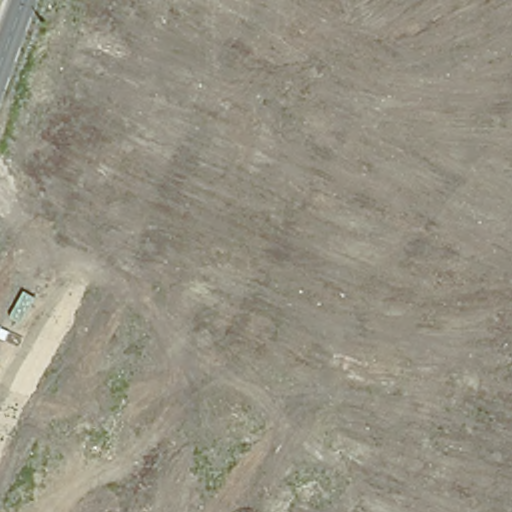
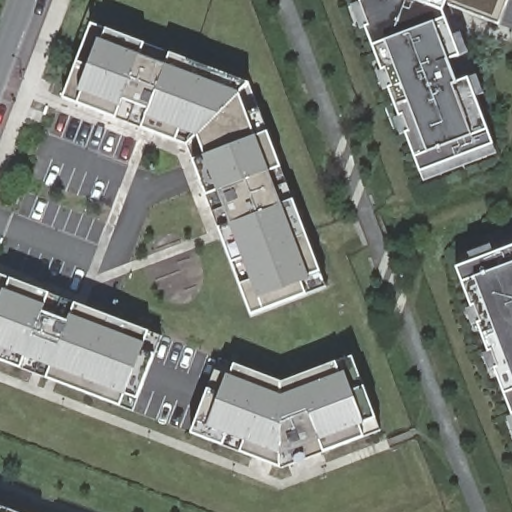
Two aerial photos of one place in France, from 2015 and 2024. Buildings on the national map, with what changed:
new [(360,4),(361,0),(446,0),(444,4),(442,9),(497,154),(425,182),(360,4)]
new [(444,4),(446,0),(508,0),(498,26),(444,4)]
new [(251,316),(187,147),(65,100),(92,24),(249,82),(327,287),(251,316)]
new [(512,247),(512,415),(455,267),(512,247)]
new [(134,410),(0,359),(0,274),(162,337),(134,410)]
new [(282,468),(193,435),(210,388),(221,357),(235,363),(283,381),(351,356),(381,430),(282,468)]
new [(17,512),(0,512),(0,505),(17,512)]

